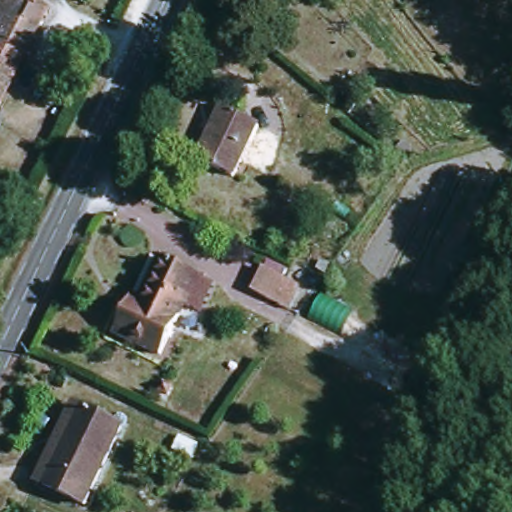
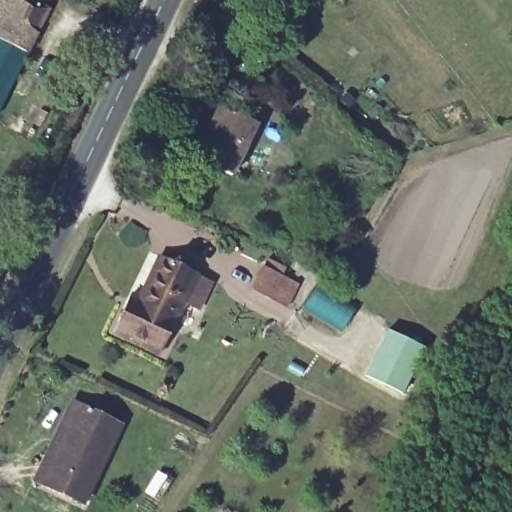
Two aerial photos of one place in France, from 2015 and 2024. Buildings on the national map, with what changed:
unchanged [(1,115),(0,114),(0,5),(2,0),(37,0),(54,9),(1,115)]
unchanged [(224,107),(257,124),(231,175),(197,157),(224,107)]
unchanged [(138,318),(165,260),(215,284),(201,315),(185,307),(161,356),(113,334),(124,312),(138,318)]
unchanged [(293,280),(281,302),(254,288),(266,265),(293,280)]
new [(387,330),(425,349),(403,394),(365,375),(387,330)]
unchanged [(77,403),(118,423),(79,502),(39,481),(77,403)]

